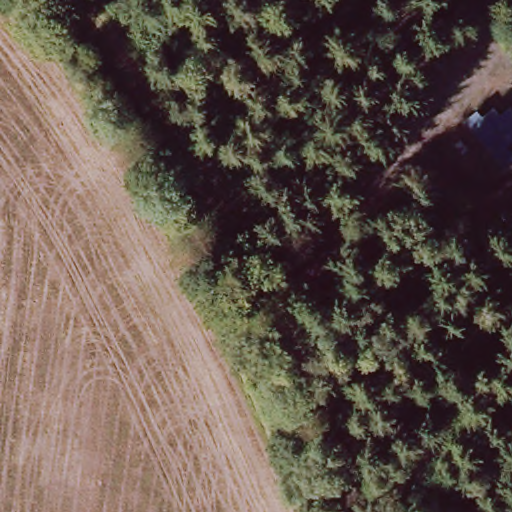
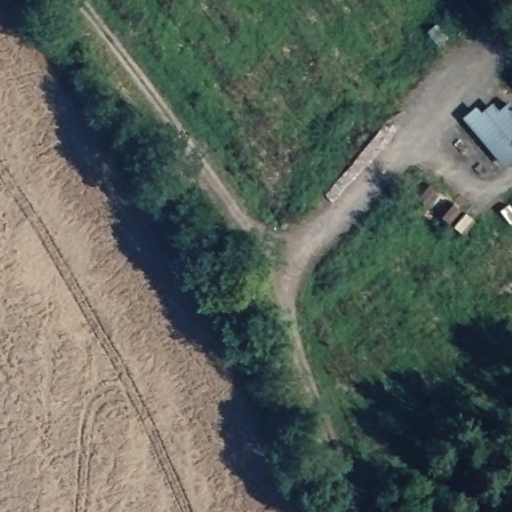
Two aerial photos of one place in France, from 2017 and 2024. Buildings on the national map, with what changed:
unchanged [(476,112),(485,121),(495,112),(502,120),(512,112),(512,145),(508,148),(512,154),(512,167),(502,174),(460,125),(476,112)]

